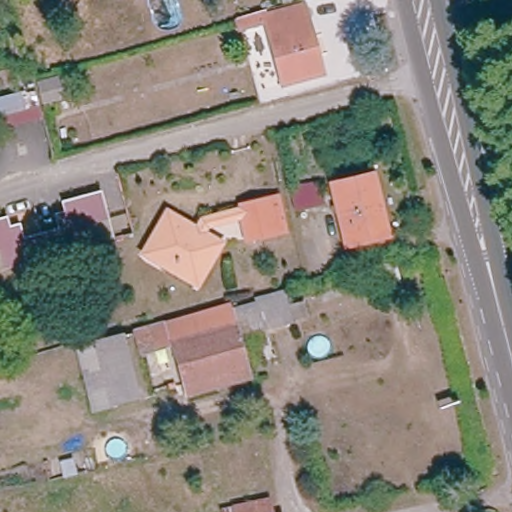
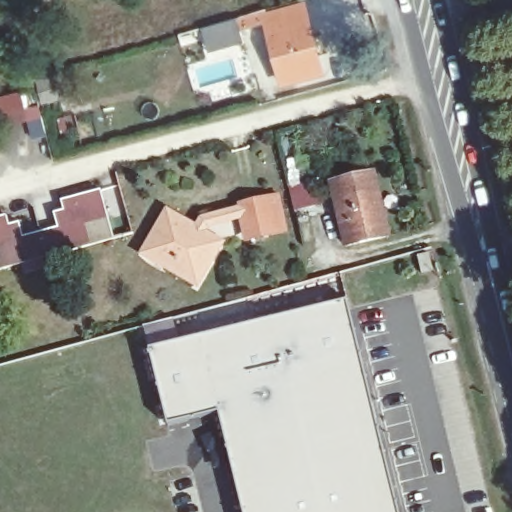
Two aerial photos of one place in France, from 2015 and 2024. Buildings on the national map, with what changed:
unchanged [(302,7),(322,79),(283,90),(266,32),(242,39),(238,23),(302,7)]
unchanged [(59,74),(64,93),(45,98),(39,80),(59,74)]
unchanged [(374,172),(389,234),(346,244),(331,183),(374,172)]
unchanged [(10,226),(20,223),(25,238),(40,233),(59,228),(55,213),(64,211),(65,210),(62,201),(101,189),(109,218),(88,224),(83,234),(86,244),(74,247),(46,255),(10,265),(8,255),(0,252),(0,219),(7,217),(10,226)]
unchanged [(320,191),(322,203),(290,211),(287,198),(320,191)]
unchanged [(277,201),(285,231),(250,239),(243,210),(277,201)]
unchanged [(202,235),(216,243),(192,283),(140,253),(155,232),(166,215),(184,225),(202,235)]
demolished [(289,327),(234,341),(242,368),(180,385),(165,331),(281,298),(289,327)]
new [(245,512),(221,412),(170,422),(153,349),(349,300),(400,512),(245,512)]
demolished [(161,326),(164,336),(135,345),(133,333),(161,326)]
demolished [(98,343),(117,338),(120,349),(119,350),(134,401),(95,413),(79,348),(98,343)]
demolished [(275,512),(233,512),(232,508),(272,498),(275,512)]

